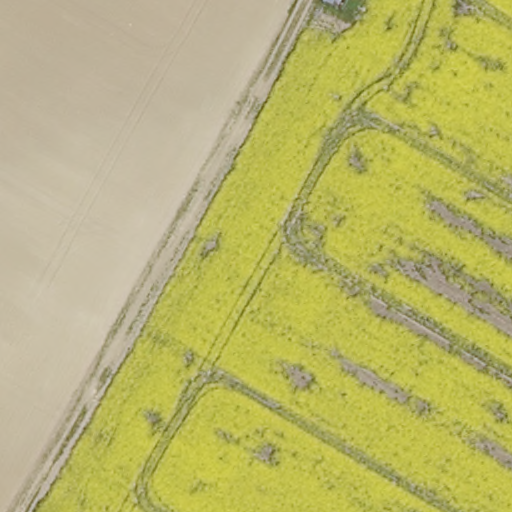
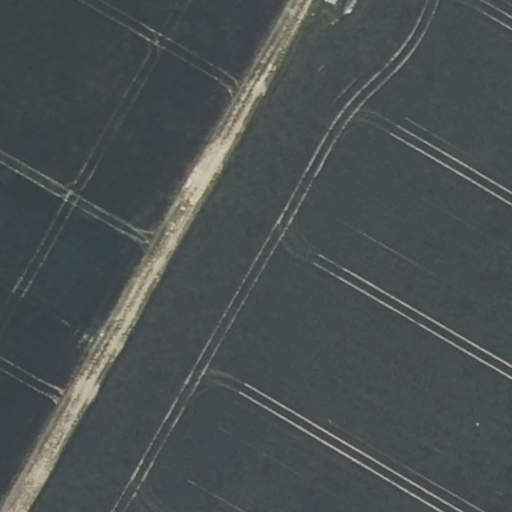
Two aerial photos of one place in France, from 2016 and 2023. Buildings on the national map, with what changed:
unchanged [(352,17),(326,6),(329,0),(360,0),(352,17)]

